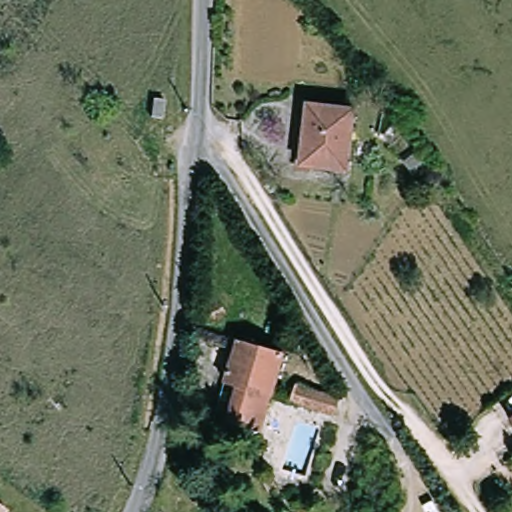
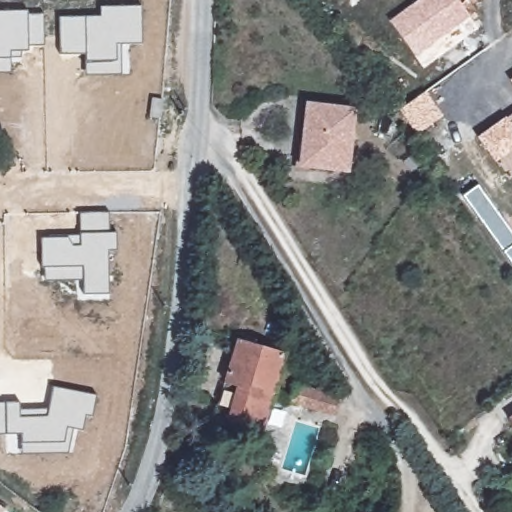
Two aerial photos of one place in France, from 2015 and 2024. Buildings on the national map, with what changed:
new [(415,56),(390,21),(419,0),(467,0),(462,4),(470,16),(415,56)]
new [(85,75),(85,61),(86,53),(60,54),(60,17),(101,16),(100,7),(142,5),(142,43),(120,43),(122,74),(85,75)]
new [(28,50),(21,49),(22,57),(10,58),(10,72),(0,72),(0,11),(27,11),(27,15),(43,13),(44,45),(28,45),(28,50)]
new [(510,80),(512,79),(512,83),(510,80)]
new [(416,134),(399,109),(426,91),(444,115),(416,134)]
unchanged [(303,171),(307,138),(313,139),(317,101),(365,106),(358,169),(322,165),(320,173),(303,171)]
new [(495,162),(477,136),(505,116),(507,118),(512,115),(512,151),(495,162)]
unchanged [(418,149),(425,159),(412,169),(405,160),(418,149)]
new [(502,251),(463,196),(479,185),(512,231),(512,263),(502,251)]
new [(85,294),(83,278),(45,280),(45,267),(42,267),(40,237),(49,237),(49,235),(80,233),(80,213),(109,212),(108,233),(117,233),(117,250),(108,251),(109,293),(85,294)]
unchanged [(235,386),(247,343),(295,358),(272,434),(238,424),(224,420),(235,386)]
unchanged [(333,415),(290,402),(297,383),(338,397),(333,415)]
new [(22,442),(22,432),(6,433),(0,434),(0,403),(6,402),(20,402),(20,410),(49,408),(54,386),(96,395),(92,415),(85,414),(82,429),(73,428),(68,453),(22,454),(22,442)]
unchanged [(508,414),(512,412),(512,419),(508,414)]
unchanged [(7,512),(0,512),(0,506),(7,511),(7,512)]

